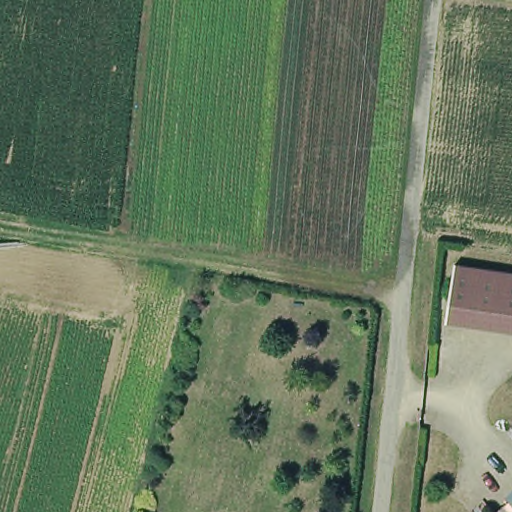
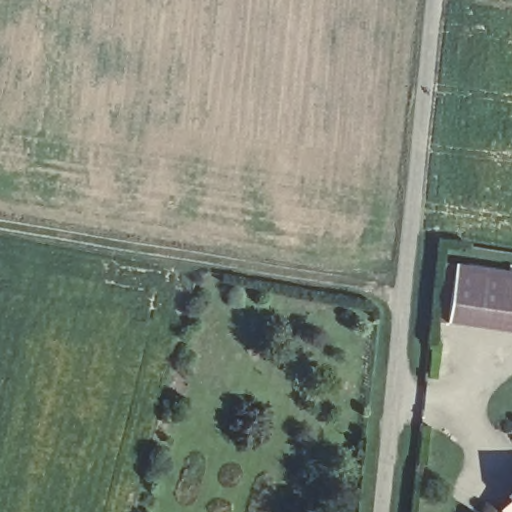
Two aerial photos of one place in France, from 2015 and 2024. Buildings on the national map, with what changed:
unchanged [(512,269),(512,327),(442,317),(442,310),(447,286),(451,259),(512,269)]
unchanged [(512,477),(512,512),(509,512),(494,497),(512,477)]

